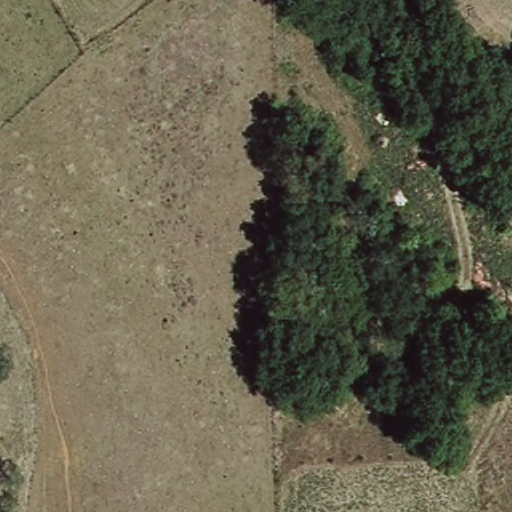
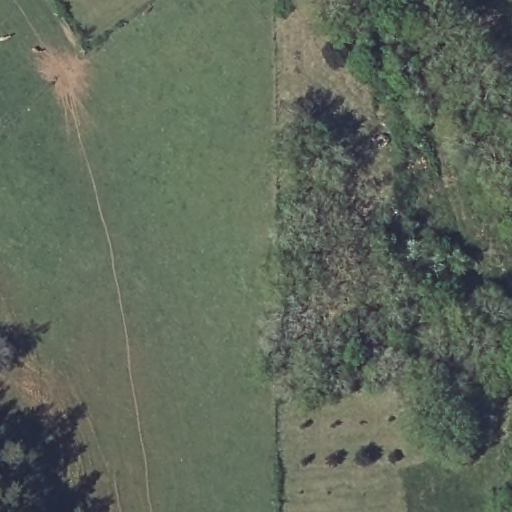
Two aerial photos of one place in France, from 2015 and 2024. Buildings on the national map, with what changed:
[]

